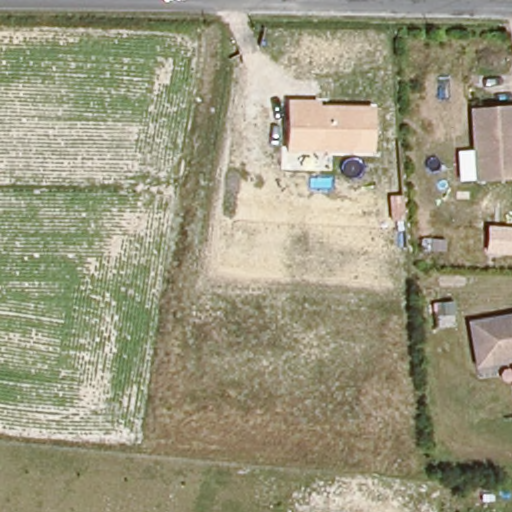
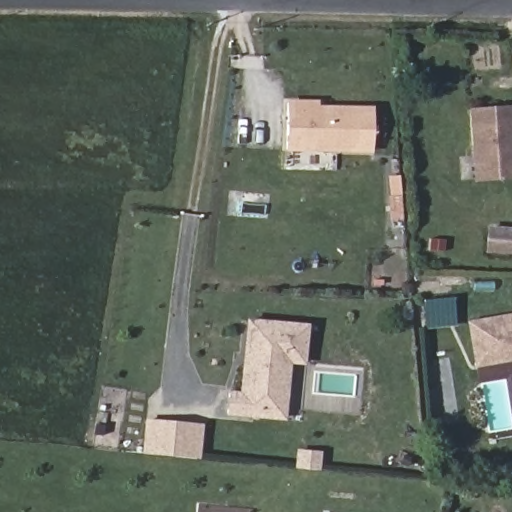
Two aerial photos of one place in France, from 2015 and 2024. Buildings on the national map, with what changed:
unchanged [(318,106),(372,107),(372,153),(286,152),(286,101),(318,101),(318,106)]
unchanged [(512,135),(512,178),(474,181),(469,110),(510,107),(512,135)]
unchanged [(487,227),(512,228),(512,255),(485,253),(487,227)]
unchanged [(512,355),(510,353),(473,360),(467,317),(512,310),(512,355)]
new [(305,365),(291,364),(286,421),(225,416),(228,390),(238,391),(246,318),(309,324),(305,365)]
new [(200,458),(142,453),(144,419),(203,424),(200,458)]

